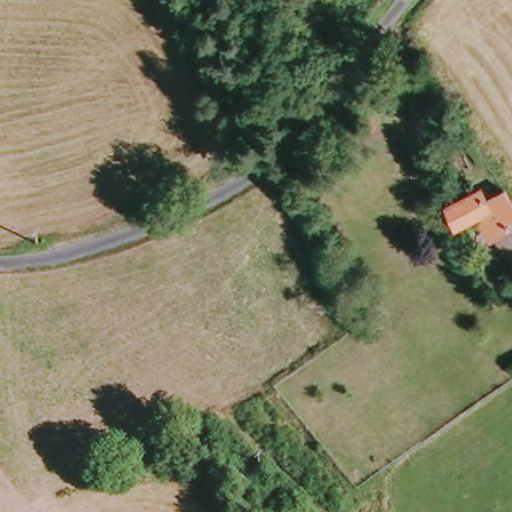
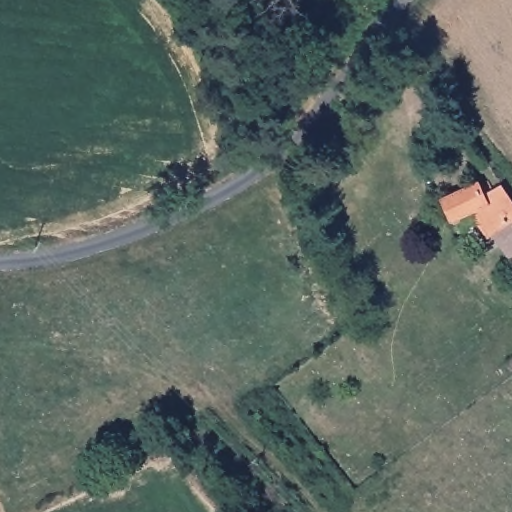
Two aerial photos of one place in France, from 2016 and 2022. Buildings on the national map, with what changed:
unchanged [(500,237),(497,241),(481,218),(464,230),(457,207),(502,189),(512,193),(512,252),(500,237)]

